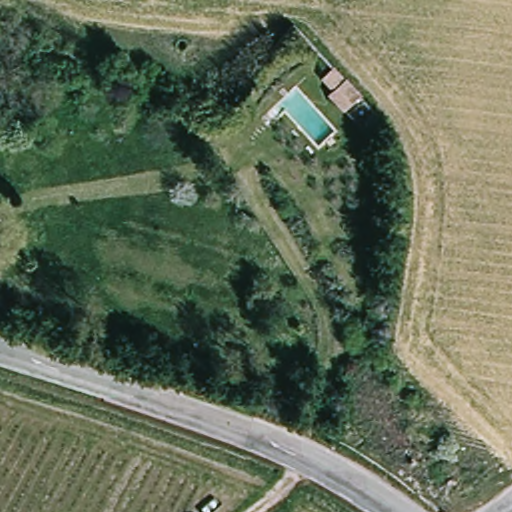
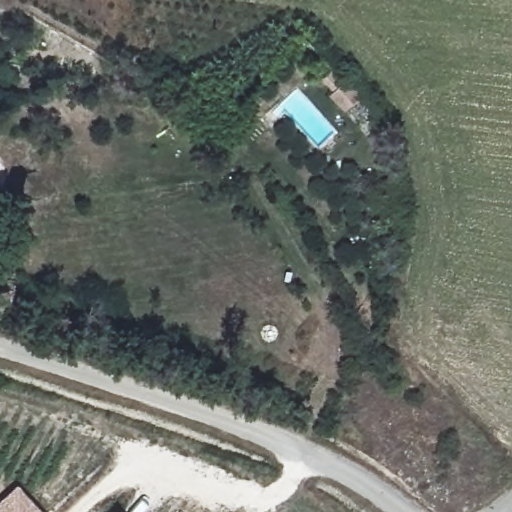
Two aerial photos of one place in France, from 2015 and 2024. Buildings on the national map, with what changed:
new [(16,485),(40,512),(0,512),(0,499),(16,485)]

